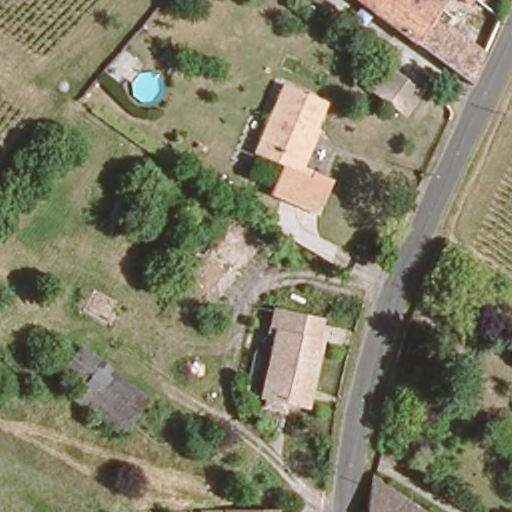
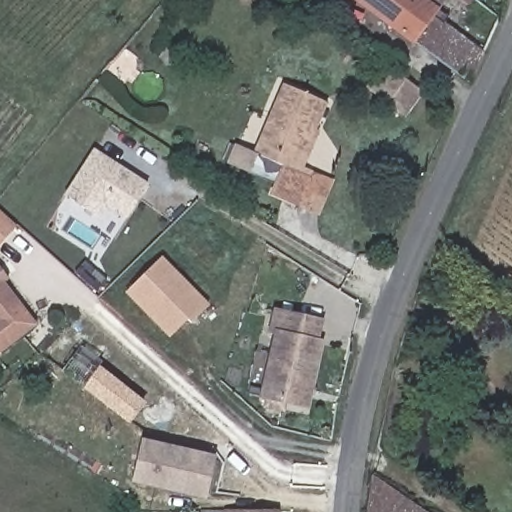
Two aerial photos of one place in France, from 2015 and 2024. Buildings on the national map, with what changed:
unchanged [(481,52),(468,81),(365,0),(441,0),(429,14),(481,52)]
unchanged [(410,87),(392,114),(368,99),(387,70),(410,87)]
unchanged [(330,99),(303,160),(315,166),(304,192),(281,182),(288,164),(256,150),(288,80),(330,99)]
new [(92,149),(147,185),(126,218),(105,206),(99,217),(63,194),(92,149)]
demolished [(134,181),(152,185),(145,210),(142,209),(129,206),(134,181)]
new [(15,226),(0,245),(0,213),(15,226)]
new [(186,320),(169,338),(125,293),(162,256),(210,305),(190,324),(186,320)]
new [(7,279),(3,282),(35,326),(0,353),(0,268),(7,279)]
demolished [(123,303),(113,323),(85,311),(95,290),(123,303)]
unchanged [(276,334),(272,331),(277,308),(323,318),(319,341),(324,343),(312,406),(289,403),(287,411),(267,407),(268,400),(264,396),(266,383),(257,380),(263,348),(273,350),(276,334)]
new [(64,374),(84,347),(102,361),(99,366),(146,401),(130,424),(64,374)]
new [(217,455),(207,500),(131,483),(142,438),(217,455)]
unchanged [(364,503),(365,478),(366,468),(427,512),(364,512),(364,503)]
unchanged [(281,511),(281,512),(202,512),(202,509),(281,511)]

